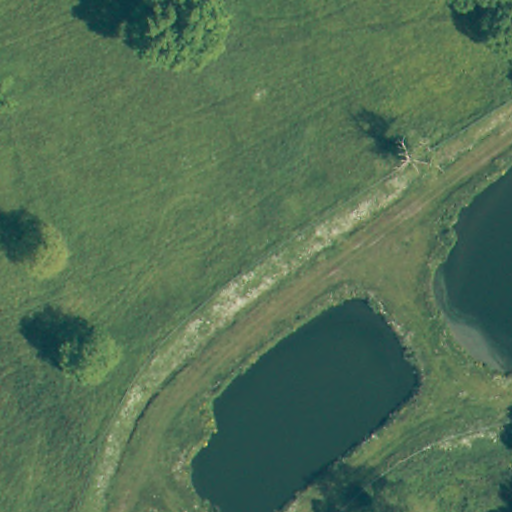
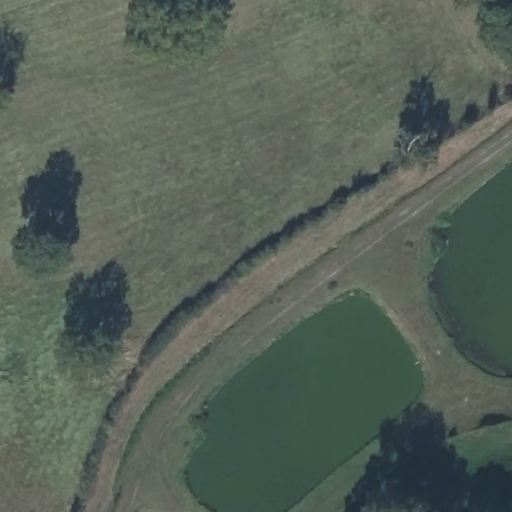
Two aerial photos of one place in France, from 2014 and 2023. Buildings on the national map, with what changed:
[]

